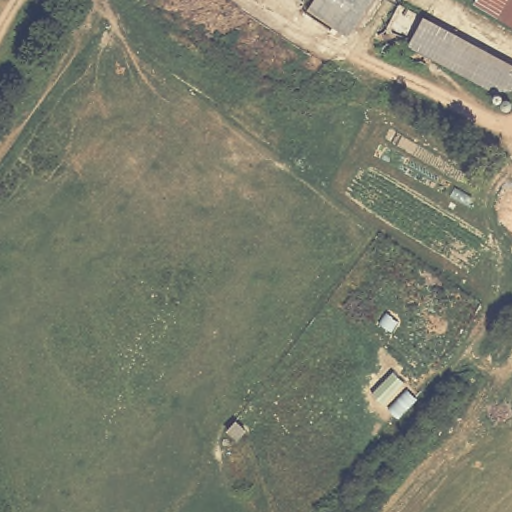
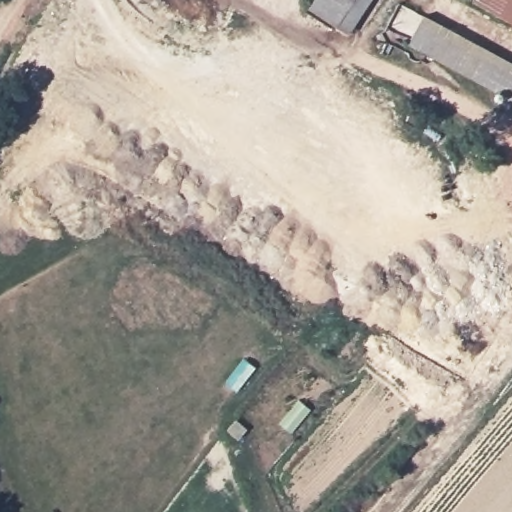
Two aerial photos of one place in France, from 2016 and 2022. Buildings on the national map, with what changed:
unchanged [(307,8),(312,0),(366,0),(344,33),(307,8)]
unchanged [(512,0),(512,20),(474,2),(476,0),(512,0)]
unchanged [(436,24),(512,62),(512,98),(417,49),(409,45),(423,17),(436,24)]

